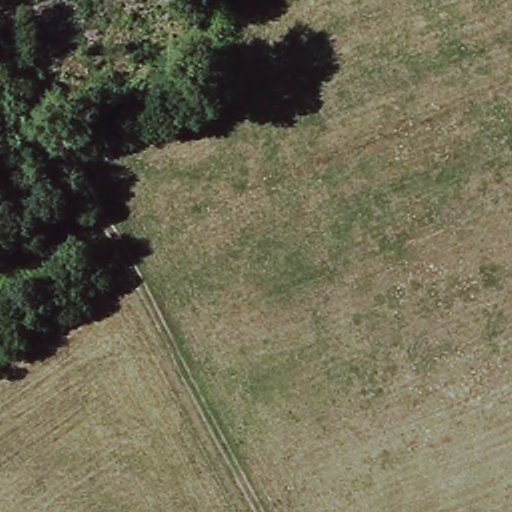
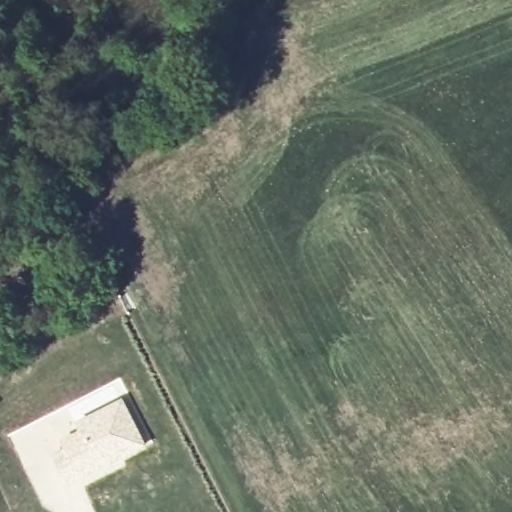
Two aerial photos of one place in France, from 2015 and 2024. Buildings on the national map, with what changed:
new [(65,443),(96,428),(92,421),(126,405),(147,447),(125,458),(121,452),(106,459),(109,466),(83,479),(69,486),(56,458),(70,452),(65,443)]

